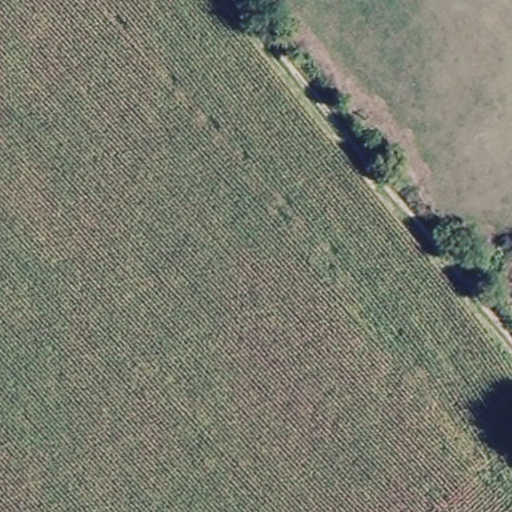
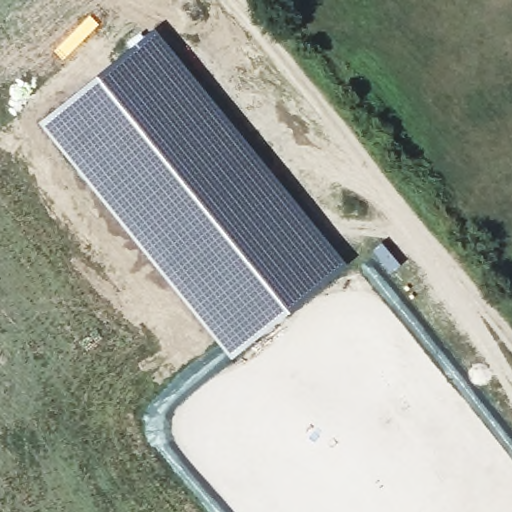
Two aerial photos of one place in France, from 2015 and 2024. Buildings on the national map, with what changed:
new [(133,43),(156,27),(349,262),(276,321),(229,355),(198,315),(79,171),(40,121),(133,43)]

